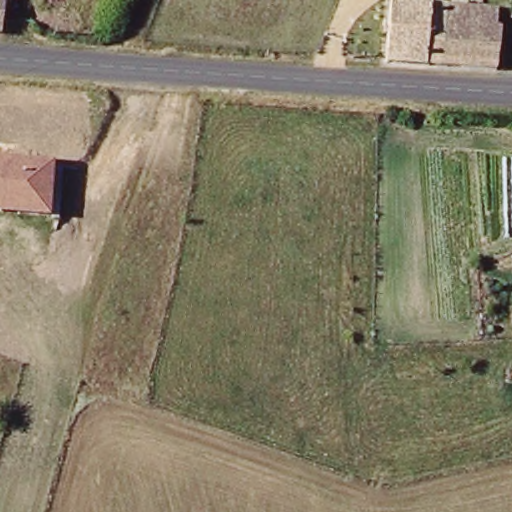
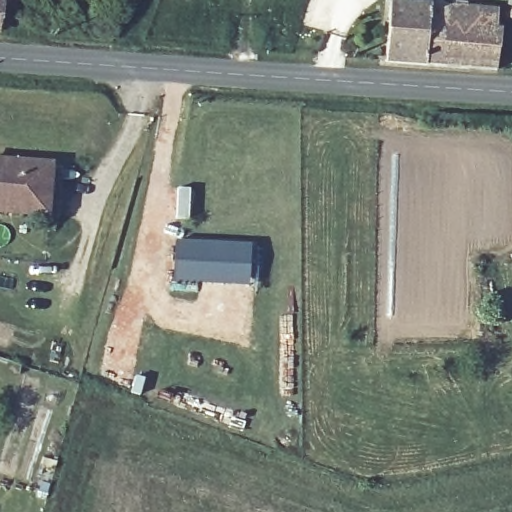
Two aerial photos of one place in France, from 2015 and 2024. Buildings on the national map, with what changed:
unchanged [(0,20),(0,0),(3,0),(0,20)]
unchanged [(494,74),(387,67),(391,0),(442,0),(493,4),(492,24),(497,24),(494,74)]
unchanged [(54,161),(49,217),(0,213),(0,157),(54,161)]
new [(175,238),(252,243),(249,285),(172,281),(175,238)]

